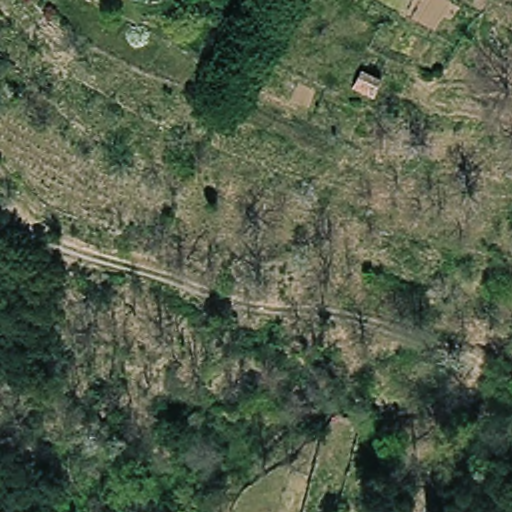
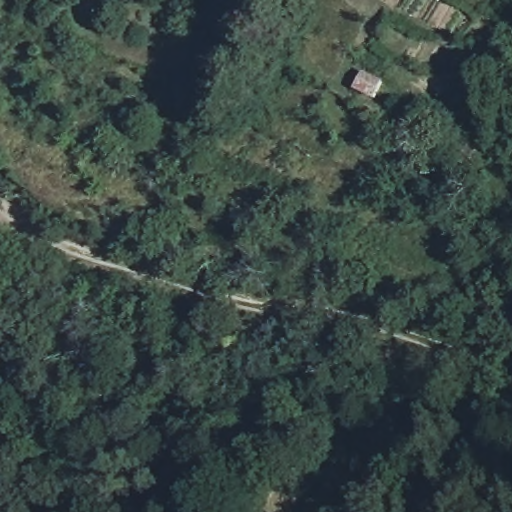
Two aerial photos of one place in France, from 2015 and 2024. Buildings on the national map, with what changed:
unchanged [(0,20),(0,18),(1,20),(0,20)]
unchanged [(374,100),(355,87),(363,75),(382,89),(374,100)]

